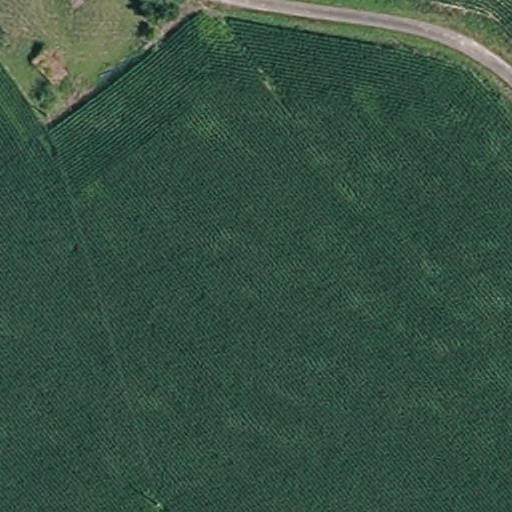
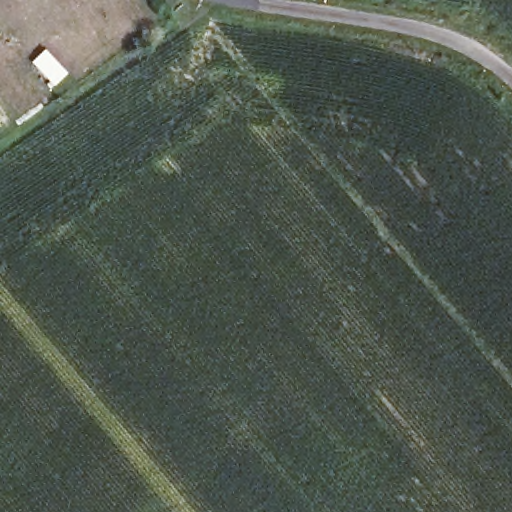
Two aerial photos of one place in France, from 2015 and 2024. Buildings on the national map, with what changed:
[]

